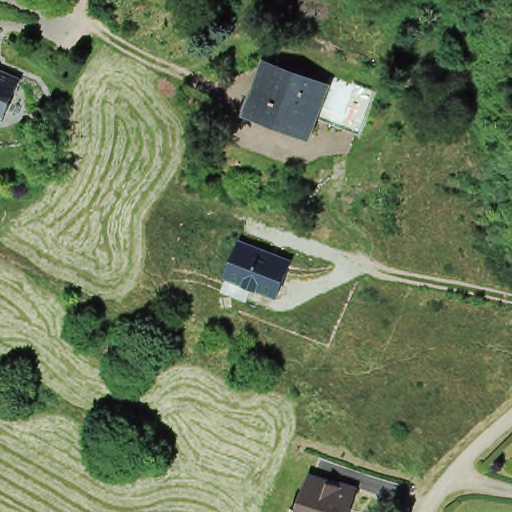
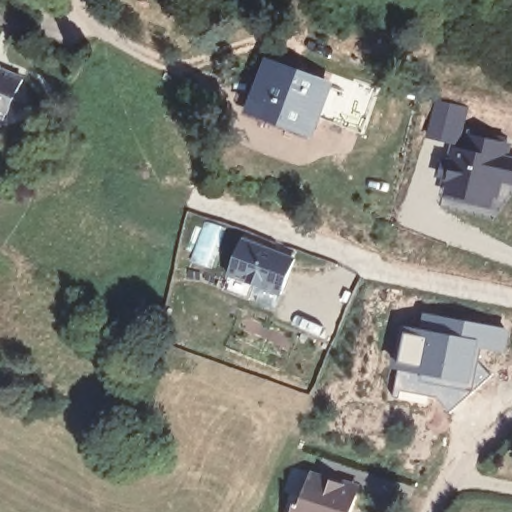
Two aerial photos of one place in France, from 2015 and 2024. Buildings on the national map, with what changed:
unchanged [(378,95),(358,141),(345,136),(313,122),(308,134),(251,111),(270,68),(275,55),(332,77),(355,86),(358,87),(378,95)]
unchanged [(5,73),(28,83),(22,97),(10,124),(2,120),(0,119),(0,58),(3,60),(5,73)]
new [(456,128),(508,140),(505,157),(512,159),(512,182),(499,180),(494,200),(442,188),(456,128)]
unchanged [(235,233),(288,252),(275,287),(249,278),(244,293),(217,283),(222,268),(235,233)]
new [(403,326),(422,329),(425,312),(509,330),(505,353),(478,350),(473,386),(393,373),(403,326)]
unchanged [(350,477),(362,482),(364,485),(355,512),(351,512),(342,510),(342,512),(296,512),(302,496),(302,492),(311,495),(315,482),(312,482),(318,464),(350,474),(350,477)]
unchanged [(351,512),(342,512),(342,510),(351,512)]
unchanged [(293,512),(291,512),(291,511),(293,512)]

